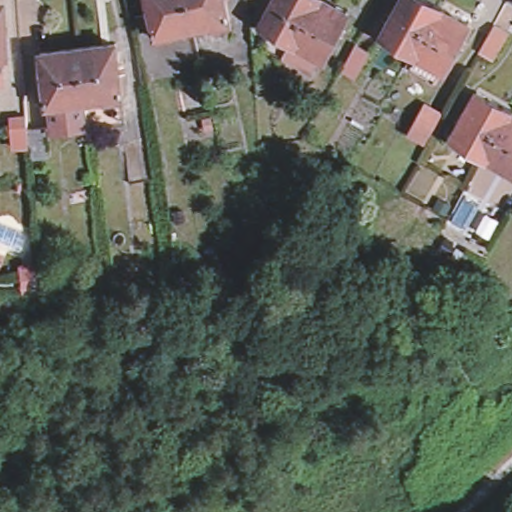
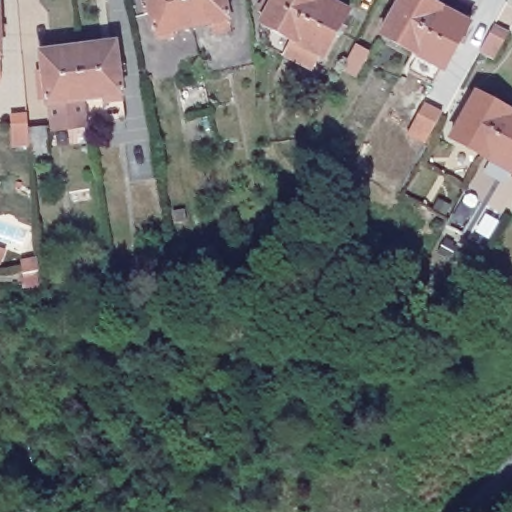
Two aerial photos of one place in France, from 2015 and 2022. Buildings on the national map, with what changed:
unchanged [(182,35),(162,39),(153,0),(192,0),(198,25),(180,28),(182,35)]
unchanged [(219,34),(218,23),(198,25),(192,0),(231,0),(237,30),(219,34)]
unchanged [(265,23),(269,16),(263,13),(270,0),(271,0),(276,3),(277,0),(334,0),(355,11),(329,60),(324,58),(319,71),(291,55),(297,42),(265,23)]
unchanged [(402,0),(422,0),(442,10),(427,36),(423,34),(412,56),(382,39),(402,0)]
unchanged [(412,56),(423,34),(427,36),(442,10),(442,11),(471,28),(445,75),(412,56)]
unchanged [(2,65),(0,65),(0,15),(2,65)]
unchanged [(477,54),(485,38),(490,29),(505,37),(492,63),(477,54)]
unchanged [(48,101),(43,49),(74,46),(118,42),(123,94),(126,121),(84,127),(53,130),(50,101),(48,101)]
unchanged [(334,72),(348,45),(363,54),(350,81),(334,72)]
unchanged [(455,146),(479,99),(509,115),(499,133),(484,161),(455,146)]
unchanged [(409,140),(427,106),(441,115),(424,149),(409,140)]
unchanged [(26,150),(25,144),(9,144),(8,115),(23,114),(24,129),(44,129),(47,158),(27,159),(26,150)]
unchanged [(499,133),(509,115),(512,117),(512,176),(484,161),(499,133)]

